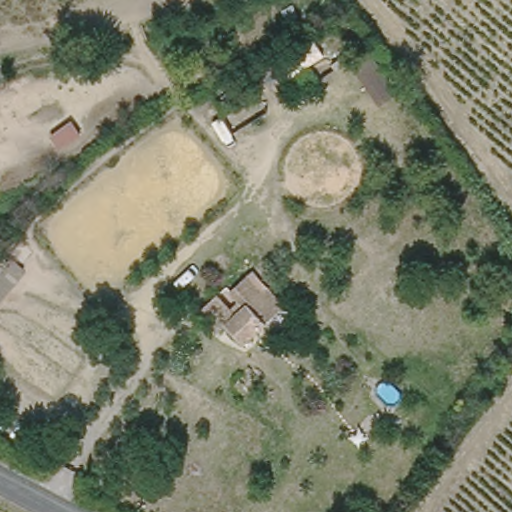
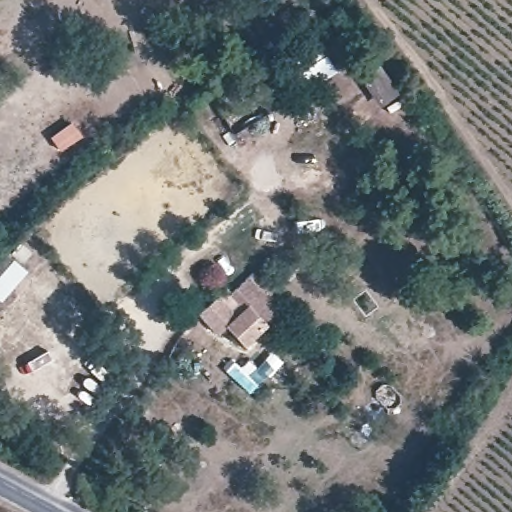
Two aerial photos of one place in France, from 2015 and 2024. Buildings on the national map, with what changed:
unchanged [(342,16),(353,30),(324,50),(324,57),(309,70),(319,84),(301,95),(275,64),(342,16)]
unchanged [(14,253),(31,270),(0,306),(0,270),(14,253)]
unchanged [(267,282),(285,301),(243,340),(225,320),(267,282)]

